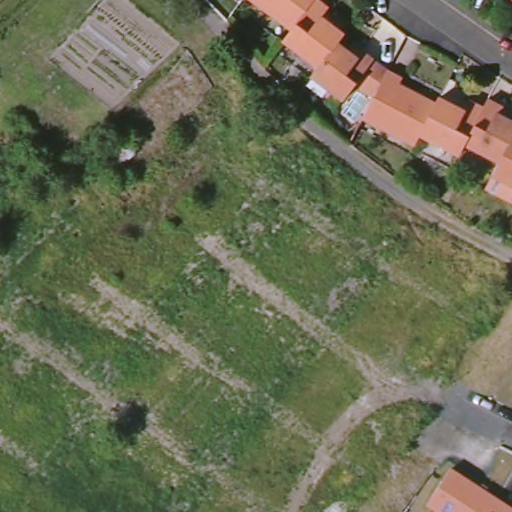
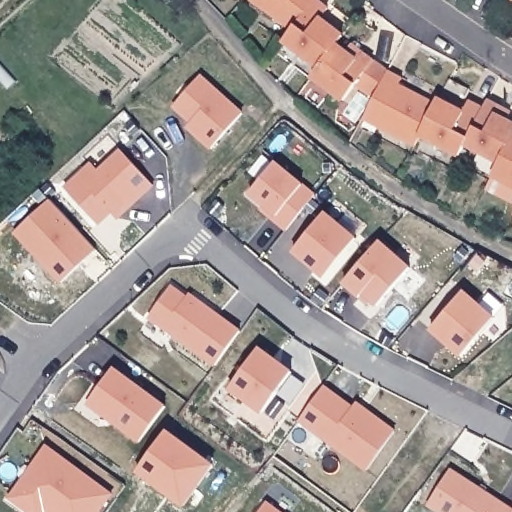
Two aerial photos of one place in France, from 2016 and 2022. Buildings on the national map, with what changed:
unchanged [(292,29),(252,0),(314,0),(292,29)]
unchanged [(292,29),(314,0),(318,0),(328,8),(321,17),(344,35),(337,44),(320,68),(283,42),(292,29)]
unchanged [(320,68),(337,44),(346,51),(352,44),(388,70),(375,97),(357,84),(343,100),(313,77),(320,68)]
unchanged [(388,70),(403,79),(399,86),(435,104),(420,134),(415,144),(363,118),(375,97),(388,70)]
new [(202,76),(243,114),(212,149),(187,127),(192,122),(174,107),(202,76)]
unchanged [(438,98),(463,111),(470,100),(483,108),(465,145),(459,156),(420,134),(435,104),(438,98)]
unchanged [(483,108),(488,99),(510,111),(507,119),(512,122),(512,137),(499,162),(465,145),(483,108)]
unchanged [(499,162),(512,137),(512,187),(492,176),(499,162)]
new [(111,212),(98,224),(65,188),(92,164),(100,171),(122,151),(154,185),(131,206),(117,219),(111,212)]
new [(277,163),(316,196),(287,230),(273,220),(277,216),(250,194),(277,163)]
new [(51,200),(97,250),(61,283),(15,232),(51,200)]
new [(326,213),(357,239),(325,278),(294,252),(326,213)]
new [(381,242),(411,268),(378,306),(364,294),(360,297),(344,283),(381,242)]
new [(172,287),(194,303),(197,300),(240,332),(215,365),(149,317),(172,287)]
new [(464,292),(495,318),(462,356),(432,330),(464,292)]
new [(259,348),(292,372),(262,413),(230,389),(259,348)]
new [(113,368),(165,407),(140,442),(110,420),(112,416),(90,400),(113,368)]
new [(323,387),(361,414),(365,409),(395,432),(367,470),(298,420),(323,387)]
new [(185,509),(138,474),(169,431),(216,467),(185,509)]
new [(47,447),(112,495),(99,512),(29,512),(10,498),(47,447)]
unchanged [(438,512),(426,504),(450,469),(512,507),(512,512),(438,512)]
new [(279,512),(260,512),(267,503),(279,512)]

